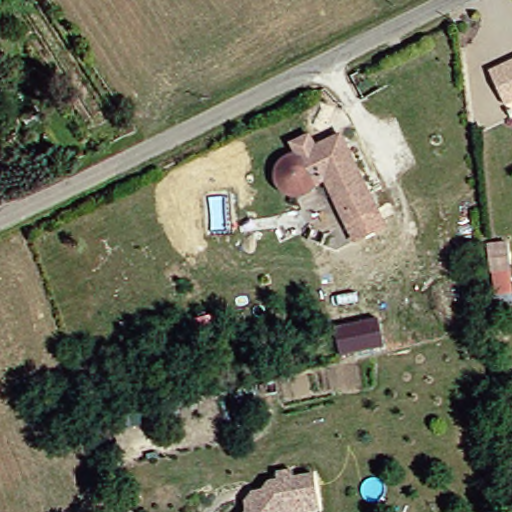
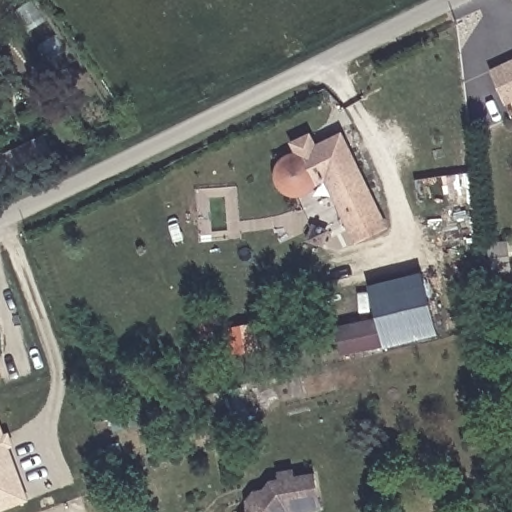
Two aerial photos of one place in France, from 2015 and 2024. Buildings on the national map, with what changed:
unchanged [(509,101),(493,67),(512,58),(512,100),(509,101)]
unchanged [(344,133),(380,209),(351,223),(329,177),(314,184),(307,191),(294,191),(288,187),(280,176),(282,164),(286,158),(293,153),(298,151),(303,153),(344,133)]
unchanged [(510,237),(512,257),(512,290),(487,292),(483,240),(510,237)]
new [(375,317),(368,286),(423,272),(438,334),(383,347),(340,357),(334,329),(375,317)]
new [(8,432),(13,443),(8,445),(28,498),(0,509),(0,425),(3,434),(8,432)]
unchanged [(248,489),(265,487),(272,477),(284,477),(283,469),(296,468),(297,476),(317,472),(321,507),(283,512),(245,512),(251,506),(248,489)]

